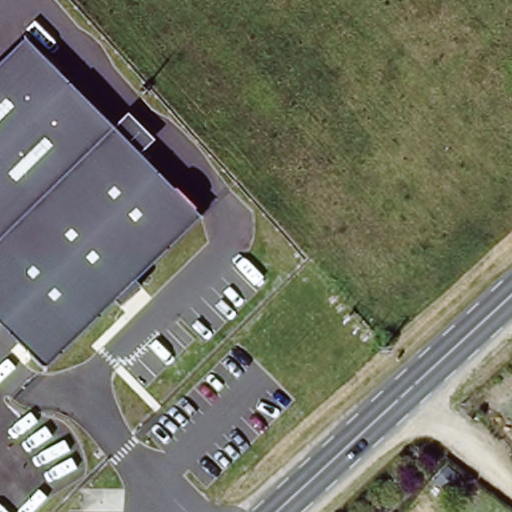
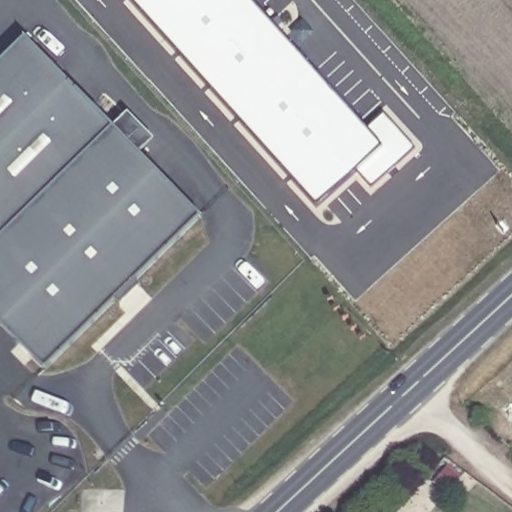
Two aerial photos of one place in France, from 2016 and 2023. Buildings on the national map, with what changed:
new [(363,131),(381,116),(412,150),(367,191),(353,174),(313,210),(125,0),(248,0),(246,1),(363,131)]
unchanged [(111,128),(127,111),(155,141),(140,157),(199,218),(44,372),(0,327),(0,66),(26,41),(111,128)]

